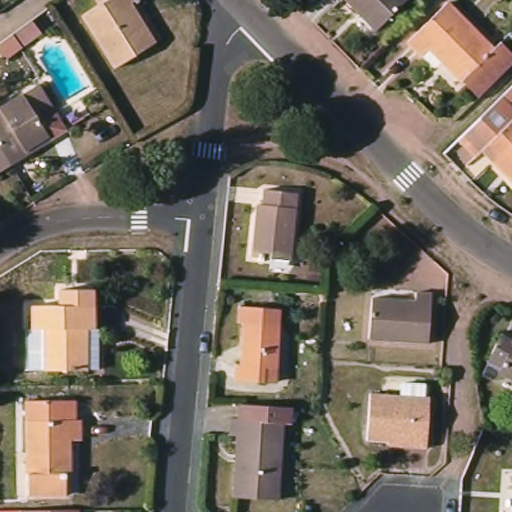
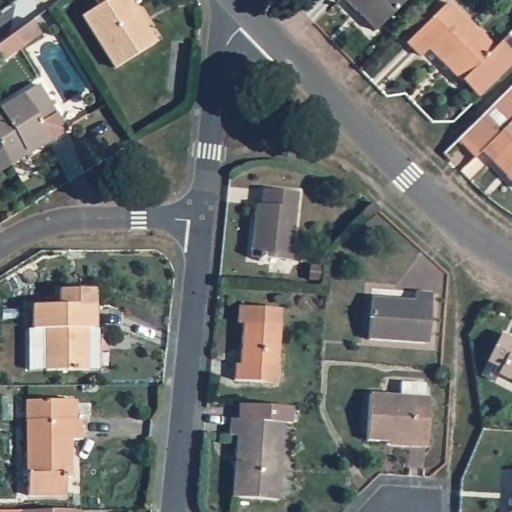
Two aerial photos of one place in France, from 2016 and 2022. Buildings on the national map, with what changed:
unchanged [(134,2),(130,5),(155,44),(116,69),(82,17),(100,7),(96,0),(132,0),(134,2)]
unchanged [(353,0),(410,0),(381,30),(353,0)]
unchanged [(447,66),(438,74),(421,56),(407,42),(447,3),(492,49),(500,42),(512,54),(512,64),(487,89),(478,98),(462,81),(447,66)]
unchanged [(40,33),(2,59),(0,56),(0,42),(31,21),(40,33)]
unchanged [(44,89),(62,119),(72,136),(55,146),(54,142),(31,156),(33,159),(15,170),(0,146),(0,115),(44,89)]
unchanged [(466,135),(512,90),(512,101),(512,102),(512,179),(510,177),(485,152),(483,153),(466,135)]
unchanged [(15,170),(0,179),(0,146),(15,170)]
unchanged [(295,261),(256,258),(262,204),(267,205),(268,189),(302,193),(295,261)]
unchanged [(97,371),(85,371),(85,372),(45,371),(45,370),(27,370),(27,330),(32,330),(32,306),(59,306),(59,290),(92,290),(92,330),(97,330),(97,371)]
unchanged [(428,344),(368,339),(371,298),(415,301),(415,292),(431,293),(428,344)]
unchanged [(263,384),(234,381),(235,365),(241,365),(242,322),(279,325),(277,369),(276,384),(263,384)]
unchanged [(491,362),(505,334),(512,337),(512,379),(502,374),(500,380),(486,373),(491,362)]
unchanged [(406,395),(407,383),(430,384),(428,397),(433,397),(431,446),(414,445),(414,442),(371,440),(373,393),(406,395)]
unchanged [(80,440),(70,440),(70,469),(66,469),(66,495),(28,495),(27,401),(75,401),(75,420),(80,420),(80,440)]
unchanged [(270,408),(292,409),(291,425),(283,425),(278,502),(233,499),(237,437),(230,437),(231,420),(239,420),(240,406),(270,408)]
unchanged [(9,512),(9,511),(84,510),(84,512),(9,512)]

